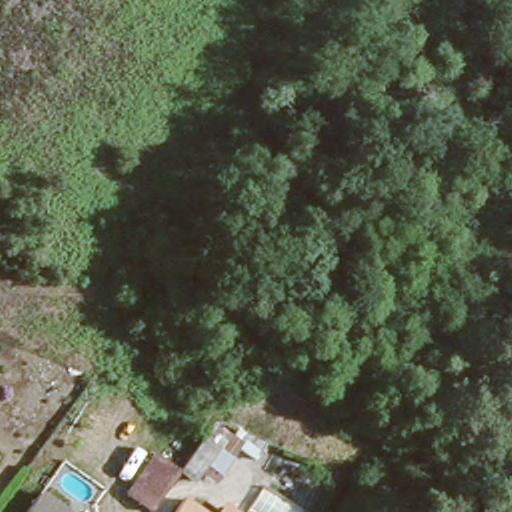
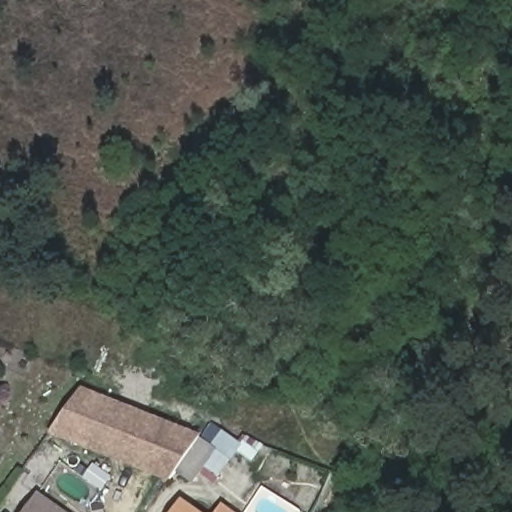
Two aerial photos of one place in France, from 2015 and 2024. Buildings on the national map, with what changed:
new [(183,464),(174,478),(127,458),(110,451),(52,428),(82,386),(129,404),(146,412),(204,436),(183,464)]
unchanged [(204,436),(209,428),(216,417),(251,432),(237,449),(223,469),(209,459),(197,474),(185,466),(183,464),(185,461),(204,436)]
demolished [(157,507),(136,491),(164,451),(183,464),(185,466),(183,469),(157,507)]
unchanged [(63,512),(24,512),(37,494),(63,512)]
unchanged [(194,512),(170,512),(178,501),(194,512)]

